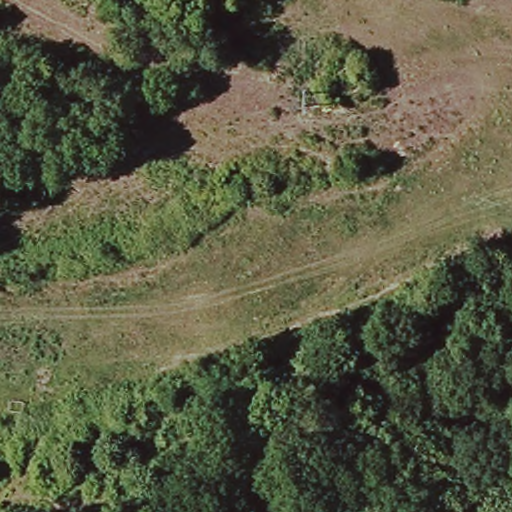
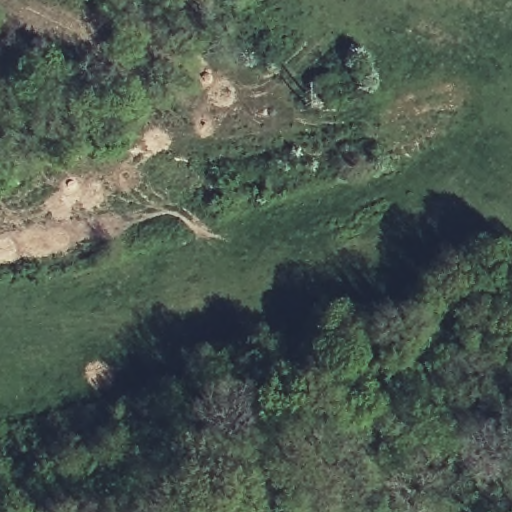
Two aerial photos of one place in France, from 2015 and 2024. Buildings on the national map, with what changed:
unchanged [(367,88),(335,110),(320,88),(352,66),(367,88)]

